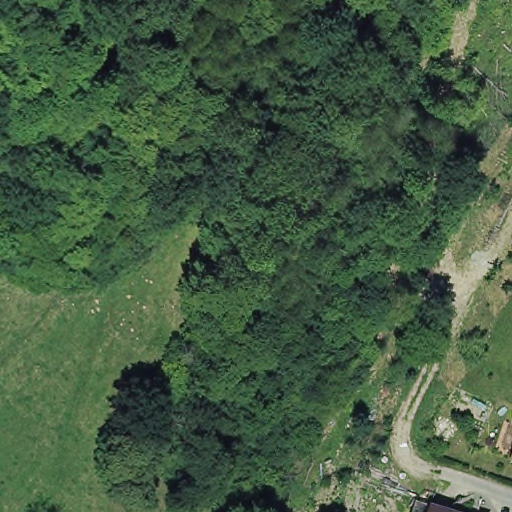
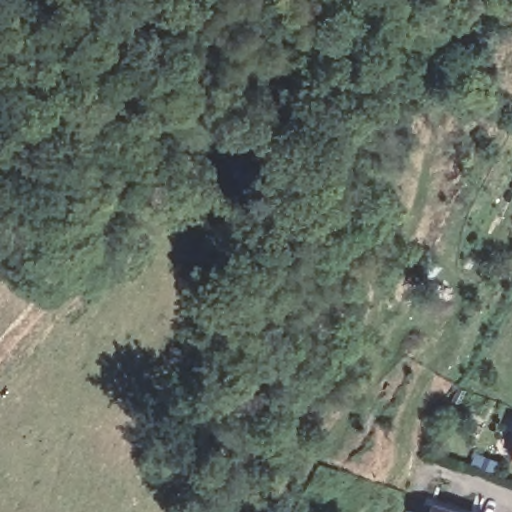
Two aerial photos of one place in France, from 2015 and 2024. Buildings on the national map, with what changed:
unchanged [(453,510),(456,502),(484,510),(483,512),(434,512),(437,505),(453,510)]

